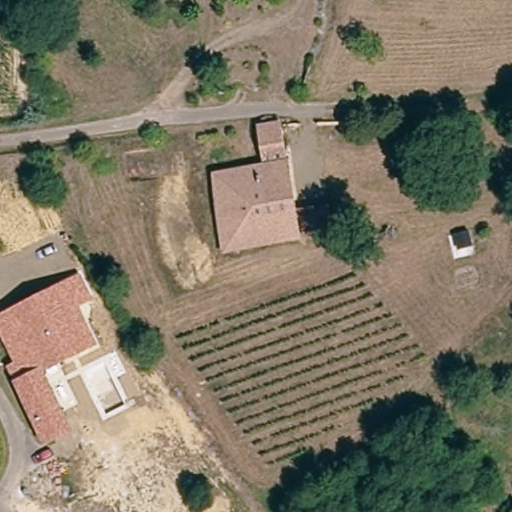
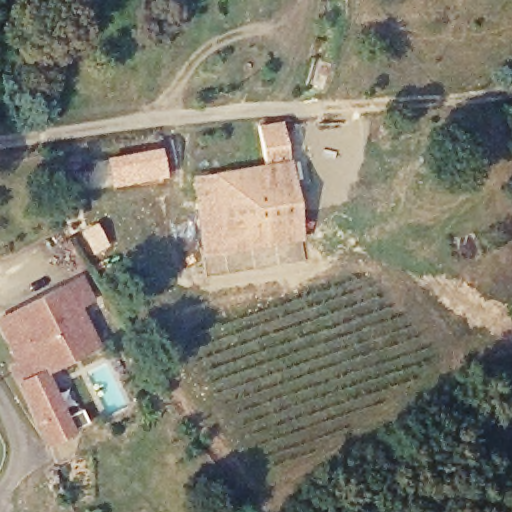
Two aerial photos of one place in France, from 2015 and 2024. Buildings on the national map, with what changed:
unchanged [(337,235),(306,240),(231,251),(215,173),(269,166),(264,126),(287,125),(293,164),(300,210),(332,206),(337,235)]
new [(112,186),(106,157),(159,147),(165,176),(112,186)]
unchanged [(12,373),(26,363),(2,326),(84,269),(99,290),(76,311),(95,338),(22,387),(12,373)]
unchanged [(75,432),(48,444),(26,387),(52,376),(75,432)]

